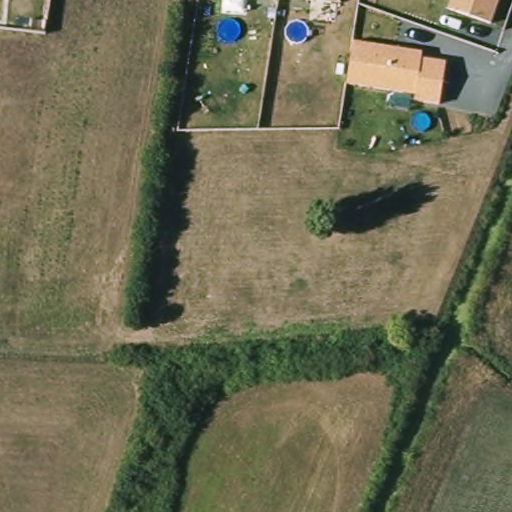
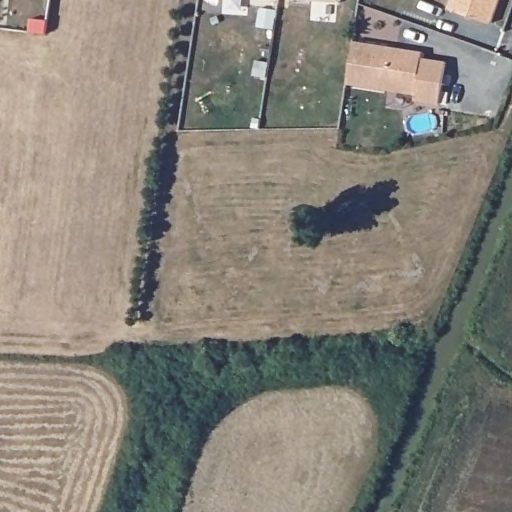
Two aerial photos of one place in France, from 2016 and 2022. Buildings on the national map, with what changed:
unchanged [(342,2),(314,0),(342,0),(342,2)]
unchanged [(489,23),(446,7),(448,0),(497,0),(489,23)]
unchanged [(423,51),(422,57),(446,61),(440,104),(413,100),(413,95),(344,84),(352,41),(423,51)]

